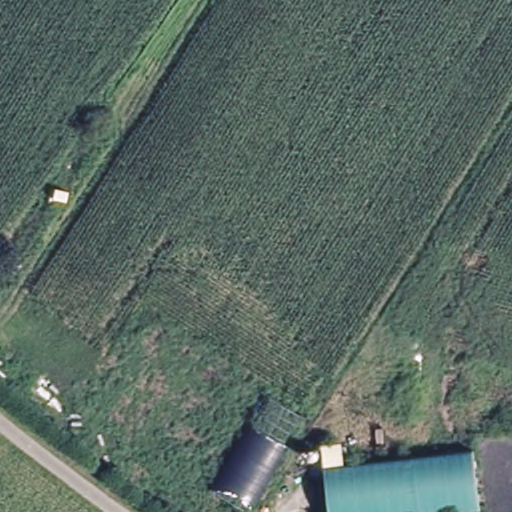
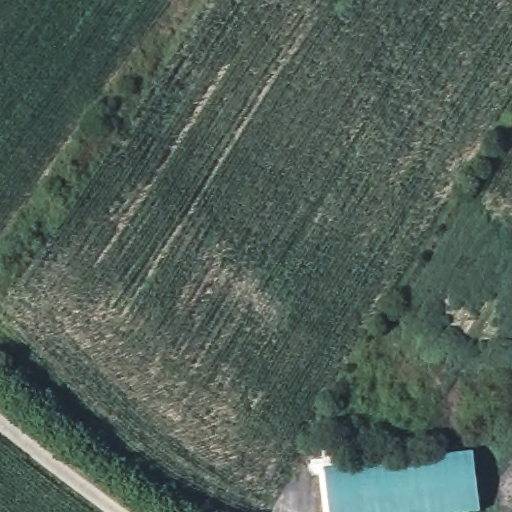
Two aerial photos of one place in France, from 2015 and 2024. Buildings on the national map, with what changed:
demolished [(268,397),(302,418),(247,512),(246,512),(212,491),(268,397)]
unchanged [(341,444),(344,467),(473,452),(481,512),(329,512),(322,445),(341,444)]

